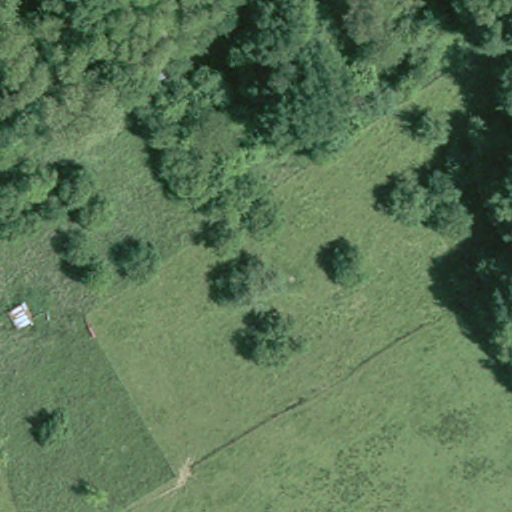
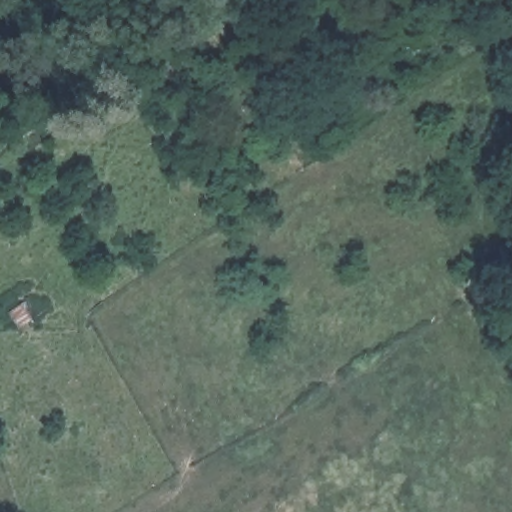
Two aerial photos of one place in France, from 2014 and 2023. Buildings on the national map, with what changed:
unchanged [(176,47),(192,64),(165,85),(150,68),(176,47)]

